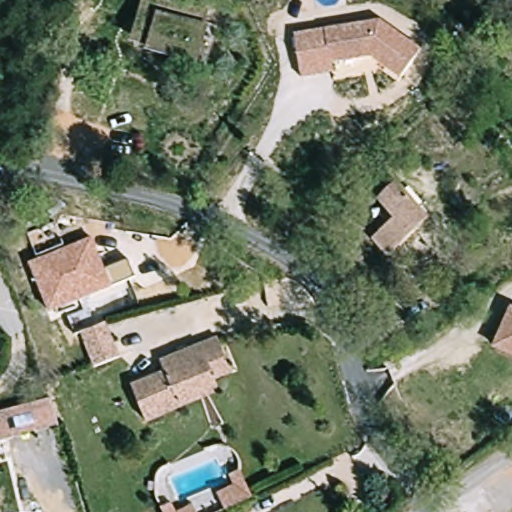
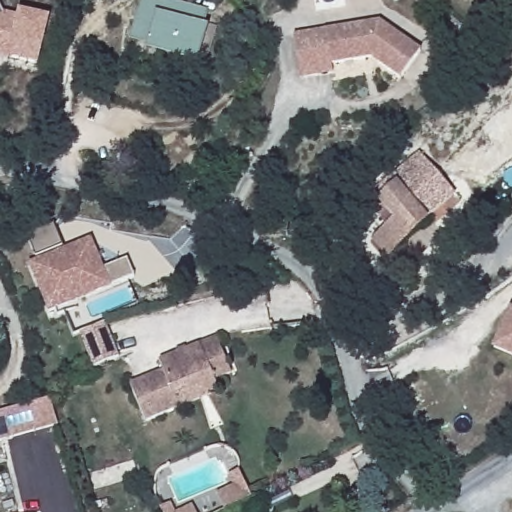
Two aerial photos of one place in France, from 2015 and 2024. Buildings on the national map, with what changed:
new [(146,49),(128,44),(141,0),(171,0),(174,1),(170,9),(155,6),(146,49)]
new [(38,67),(7,59),(0,57),(0,5),(3,11),(19,10),(50,18),(38,67)]
unchanged [(146,49),(155,6),(207,16),(198,57),(146,49)]
unchanged [(325,28),(379,20),(423,50),(401,80),(372,58),(332,64),(334,74),(301,78),(293,32),(325,28)]
new [(392,177),(418,151),(455,193),(429,216),(408,184),(403,188),(392,177)]
unchanged [(434,224),(390,253),(375,229),(398,213),(388,197),(408,184),(434,224)]
unchanged [(128,261),(134,278),(108,288),(50,313),(28,263),(91,239),(103,270),(128,261)]
unchanged [(498,351),(512,315),(512,357),(498,351)]
unchanged [(105,326),(118,361),(92,370),(80,335),(105,326)]
unchanged [(182,410),(145,424),(130,390),(165,374),(162,365),(221,337),(237,372),(216,382),(220,394),(182,410)]
unchanged [(59,421),(0,439),(0,410),(52,395),(59,421)]
unchanged [(240,469),(252,495),(223,509),(217,496),(232,489),(227,476),(240,469)]
unchanged [(156,505),(169,499),(175,512),(159,512),(156,505)]
unchanged [(190,507),(192,512),(177,512),(190,507)]

